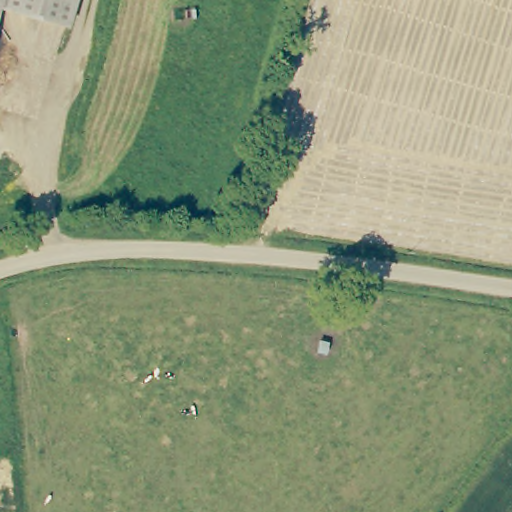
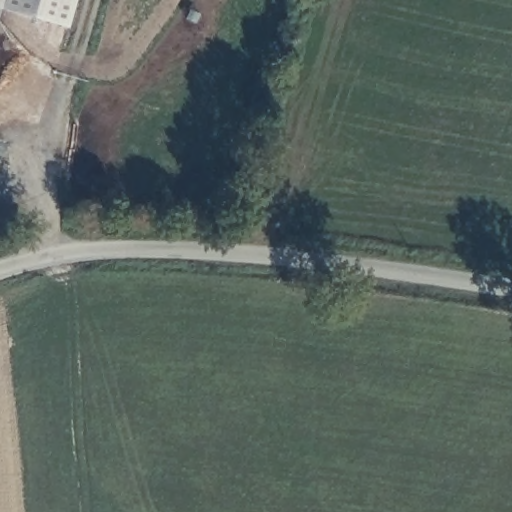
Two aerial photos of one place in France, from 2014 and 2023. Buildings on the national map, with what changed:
unchanged [(67,24),(0,4),(0,6),(0,0),(74,0),(67,24)]

